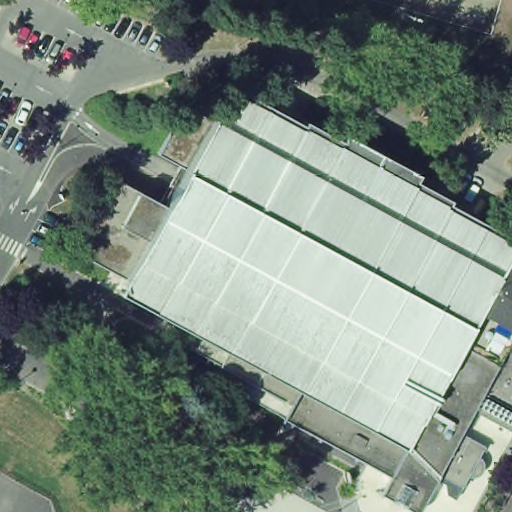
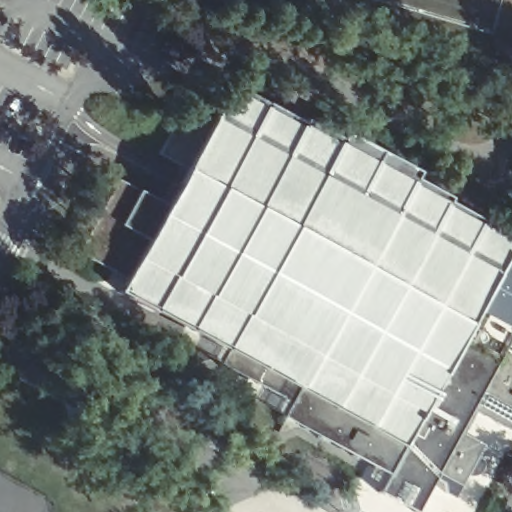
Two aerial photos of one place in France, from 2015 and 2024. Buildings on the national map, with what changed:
unchanged [(185,174),(186,174),(212,125),(231,90),(302,128),(303,124),(339,144),(342,137),(417,177),(413,184),(448,203),(447,207),(512,243),(512,339),(471,414),(459,436),(437,477),(437,478),(419,512),(405,512),(377,497),(387,480),(280,422),(288,408),(217,369),(225,355),(118,297),(125,284),(165,210),(185,174)]
unchanged [(185,174),(158,159),(185,110),(212,125),(186,174),(185,174)]
unchanged [(84,245),(117,184),(165,210),(125,284),(90,264),(87,262),(85,259),(83,256),(82,252),(82,249),(84,245)]
unchanged [(512,436),(471,414),(512,339),(512,436)]
unchanged [(484,450),(478,460),(481,463),(482,467),(482,471),(482,475),(479,478),(475,480),(471,481),(467,480),(462,491),(437,478),(437,477),(459,436),(484,450)]

